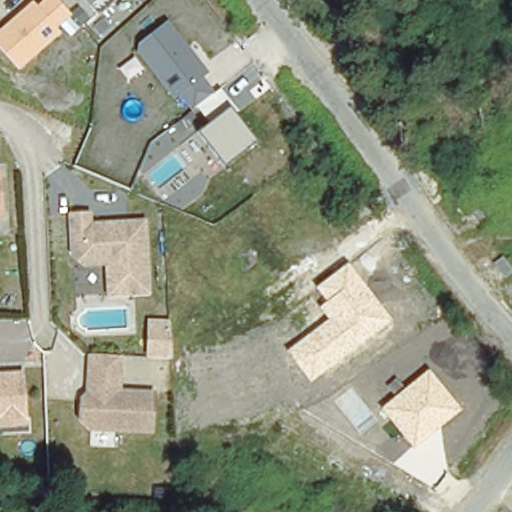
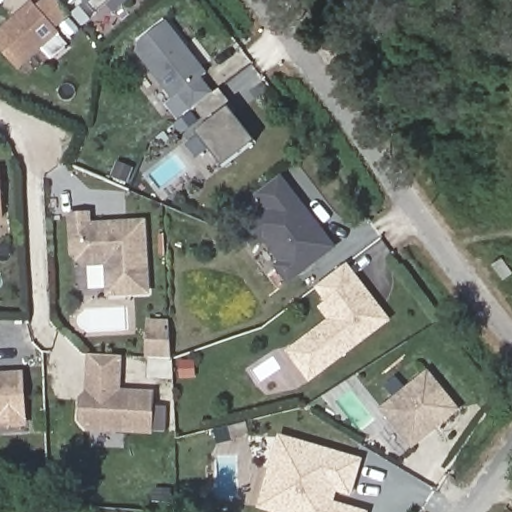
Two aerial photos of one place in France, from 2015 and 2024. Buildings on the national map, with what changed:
unchanged [(55,28),(61,34),(18,69),(0,47),(0,26),(30,0),(33,0),(36,5),(43,0),(58,0),(71,14),(55,28)]
unchanged [(96,12),(86,0),(111,0),(96,12)]
unchanged [(223,165),(197,131),(208,123),(195,108),(191,111),(178,96),(174,99),(137,51),(138,41),(168,19),(208,74),(203,76),(214,92),(220,87),(239,111),(235,114),(254,141),(223,165)]
unchanged [(0,167),(2,215),(0,215),(0,168),(0,167)]
new [(290,286),(275,266),(281,261),(265,240),(254,249),(241,231),(265,212),(255,197),(284,175),(339,247),(290,286)]
unchanged [(91,212),(91,223),(146,221),(148,291),(110,292),(109,261),(85,262),(75,252),(73,213),(91,212)]
unchanged [(311,383),(286,350),(328,319),(320,306),(326,301),(316,287),(349,264),(392,321),(311,383)]
unchanged [(81,420),(83,401),(92,393),(93,377),(90,377),(91,357),(121,359),(120,379),(119,395),(153,397),(150,434),(89,430),(81,420)]
unchanged [(414,448),(381,406),(394,396),(386,385),(396,377),(405,388),(429,371),(461,411),(414,448)]
unchanged [(24,377),(25,418),(4,419),(1,422),(0,422),(0,378),(24,377)]
new [(334,501),(363,512),(271,512),(259,508),(281,435),(364,459),(353,496),(337,492),(334,501)]

